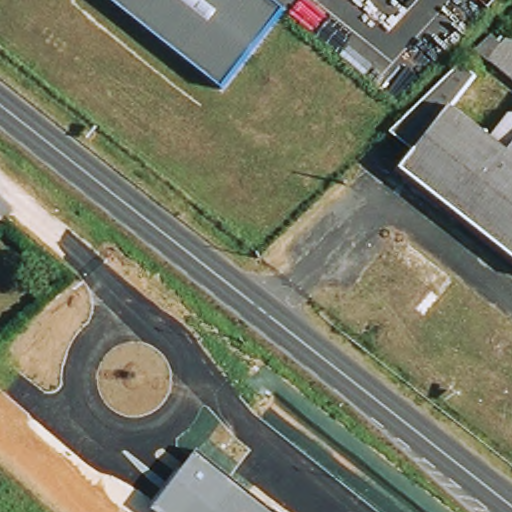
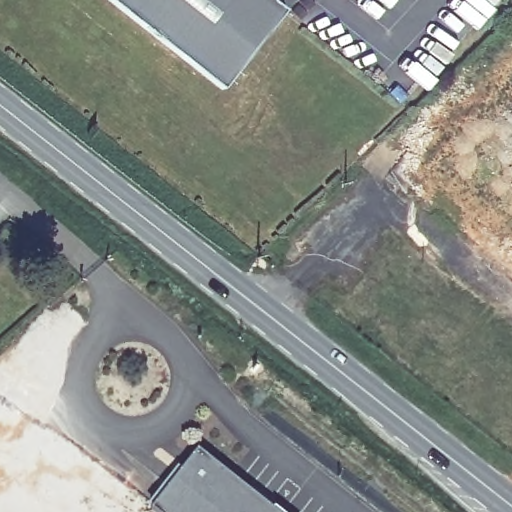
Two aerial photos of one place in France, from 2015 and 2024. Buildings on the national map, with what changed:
unchanged [(285,8),(222,89),(110,0),(274,0),(285,8)]
demolished [(507,34),(512,38),(512,83),(470,45),(486,29),(500,42),(507,34)]
demolished [(405,149),(414,139),(392,119),(457,58),(472,73),(447,100),(503,150),(512,140),(512,267),(391,163),(405,149)]
unchanged [(154,512),(150,509),(195,450),(274,512),(154,512)]

